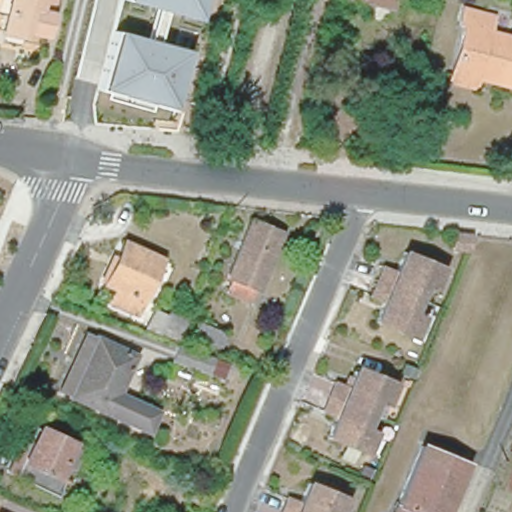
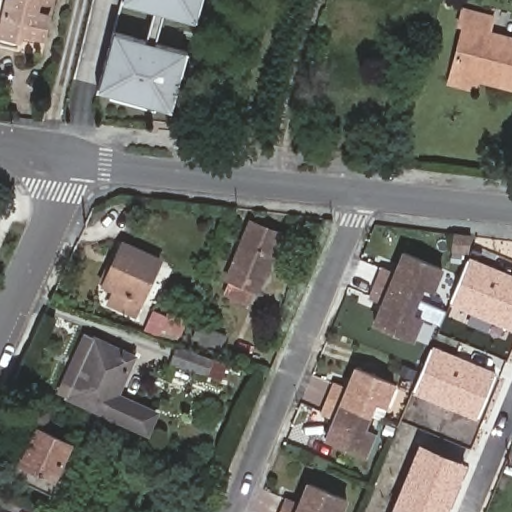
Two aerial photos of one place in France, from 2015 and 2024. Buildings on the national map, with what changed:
unchanged [(48,28),(27,23),(23,40),(3,34),(9,6),(0,4),(0,5),(0,0),(55,0),(48,28)]
unchanged [(197,20),(123,2),(124,0),(203,0),(197,20)]
demolished [(385,3),(382,10),(344,0),(386,0),(385,3)]
demolished [(434,19),(415,15),(419,0),(438,0),(434,19)]
unchanged [(456,74),(468,29),(462,27),(467,10),(495,17),(490,34),(512,39),(512,89),(481,81),(479,91),(453,85),(456,74)]
unchanged [(172,112),(99,92),(115,32),(188,51),(172,112)]
unchanged [(251,277),(246,290),(226,282),(231,269),(227,267),(249,212),(281,224),(258,280),(251,277)]
unchanged [(448,251),(449,237),(466,238),(464,253),(448,251)]
unchanged [(116,303),(121,289),(110,283),(129,244),(164,259),(139,313),(116,303)]
unchanged [(370,280),(375,268),(388,273),(397,250),(434,266),(425,289),(416,285),(411,297),(370,280)]
new [(512,274),(512,330),(450,305),(469,257),(512,274)]
unchanged [(404,314),(413,318),(404,340),(366,323),(375,303),(363,298),(370,280),(411,297),(404,314)]
unchanged [(157,331),(166,310),(183,318),(175,338),(157,331)]
unchanged [(197,322),(225,332),(220,345),(192,335),(197,322)]
unchanged [(122,393),(162,410),(153,430),(114,412),(75,395),(66,391),(90,333),(101,338),(139,355),(122,393)]
new [(413,393),(433,345),(496,371),(476,419),(413,393)]
unchanged [(183,346),(219,358),(213,372),(178,360),(183,346)]
unchanged [(323,400),(327,389),(340,394),(349,371),(387,387),(379,410),(368,406),(364,417),(323,400)]
unchanged [(357,435),(366,439),(358,460),(320,445),(328,423),(316,418),(323,400),(364,417),(357,435)]
unchanged [(12,470),(4,466),(18,434),(26,437),(33,420),(65,435),(78,441),(64,474),(62,473),(54,489),(12,470)]
unchanged [(466,458),(444,512),(391,512),(421,440),(466,458)]
unchanged [(288,509),(298,486),(336,501),(332,512),(272,512),(275,504),(288,509)]

